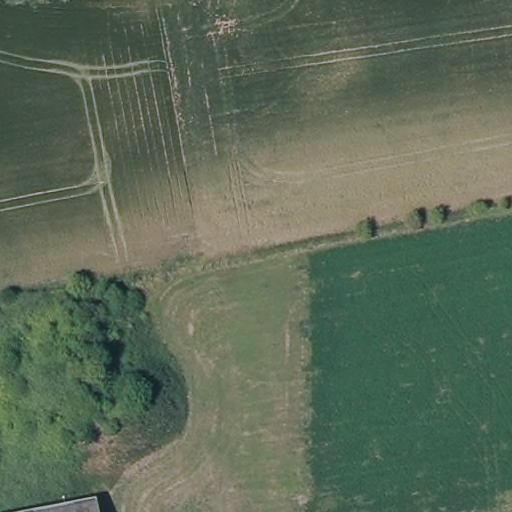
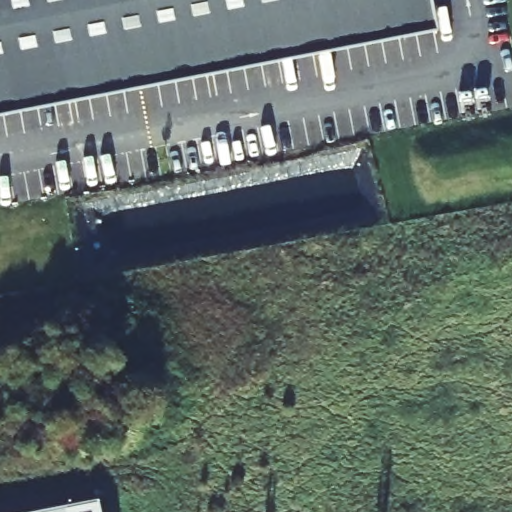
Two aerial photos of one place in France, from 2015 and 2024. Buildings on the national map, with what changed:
new [(432,31),(0,116),(0,0),(426,0),(432,31)]

